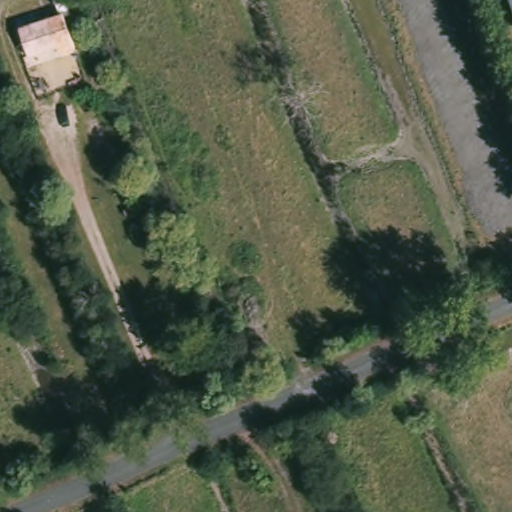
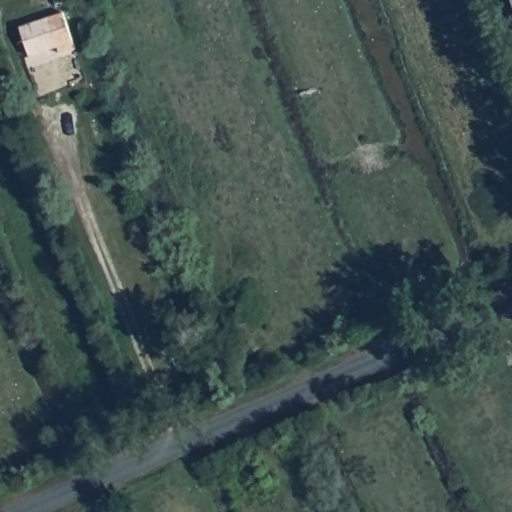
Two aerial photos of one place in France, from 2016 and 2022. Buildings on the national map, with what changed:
unchanged [(60,14),(76,50),(59,56),(56,46),(24,55),(15,28),(60,14)]

